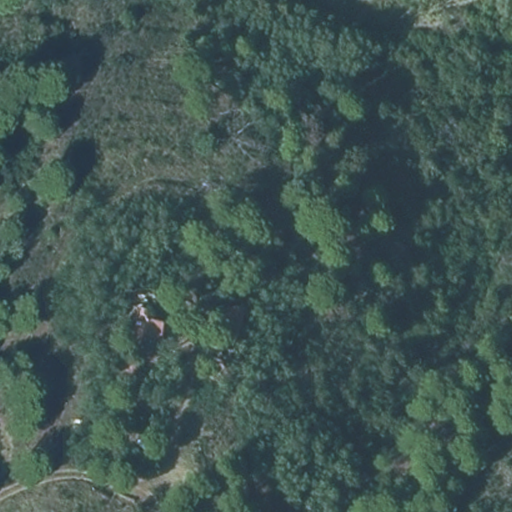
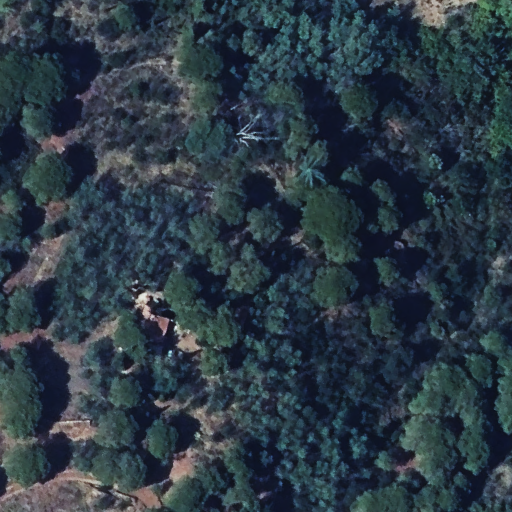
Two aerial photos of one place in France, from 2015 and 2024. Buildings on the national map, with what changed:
unchanged [(160,373),(139,365),(153,321),(172,322),(160,373)]

